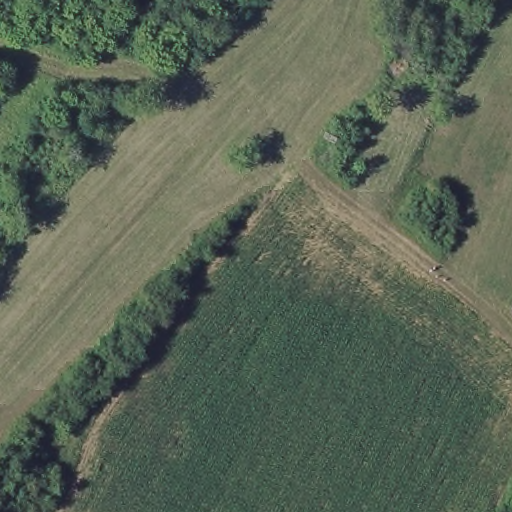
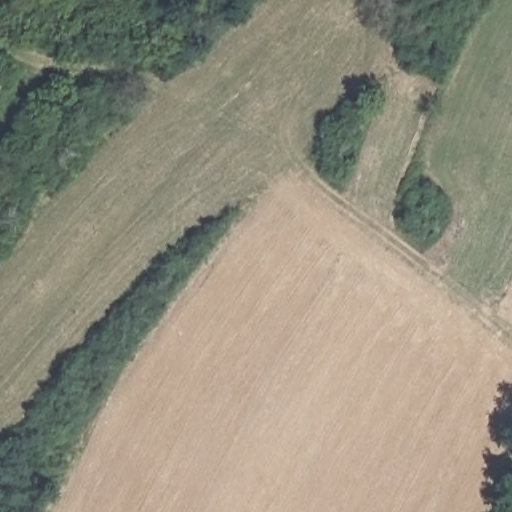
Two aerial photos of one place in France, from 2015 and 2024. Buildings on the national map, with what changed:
[]

